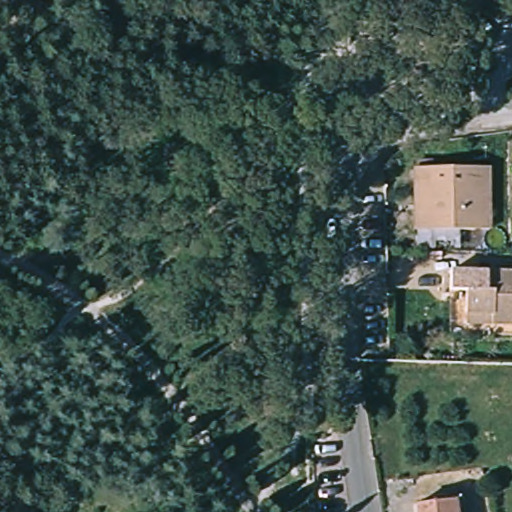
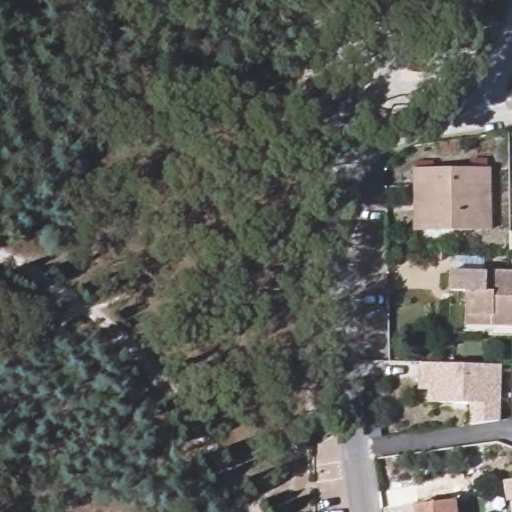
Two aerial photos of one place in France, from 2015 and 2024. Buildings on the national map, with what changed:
unchanged [(487,172),(488,234),(414,234),(413,172),(487,172)]
unchanged [(512,330),(463,328),(463,294),(448,294),(448,273),(512,276),(512,330)]
new [(471,401),(429,399),(430,387),(420,387),(420,376),(420,360),(500,362),(499,413),(499,419),(471,423),(471,418),(471,401)]
unchanged [(452,512),(414,512),(413,509),(451,504),(452,512)]

